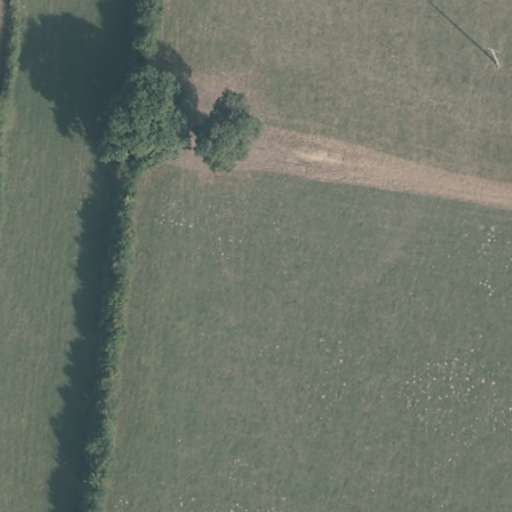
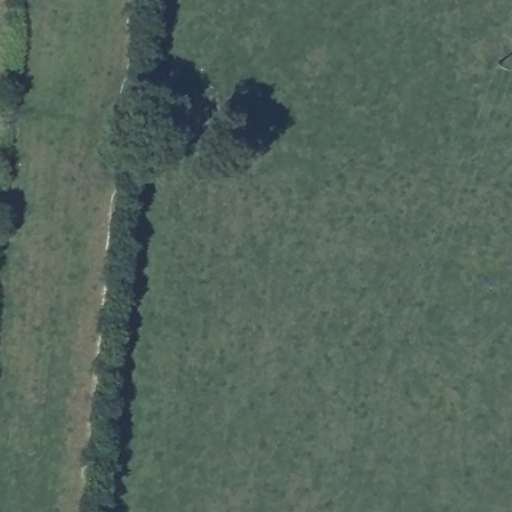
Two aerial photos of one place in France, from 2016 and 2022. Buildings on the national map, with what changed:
[]

